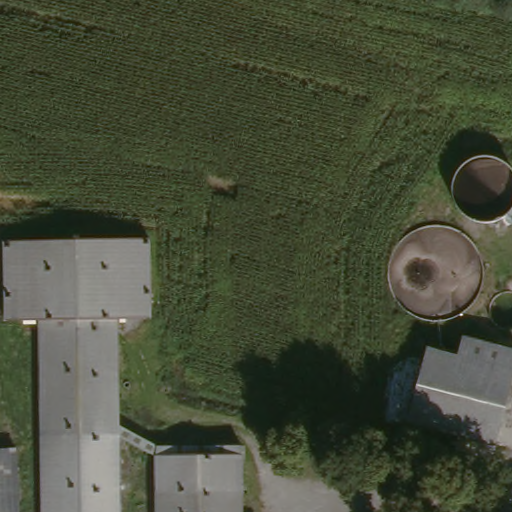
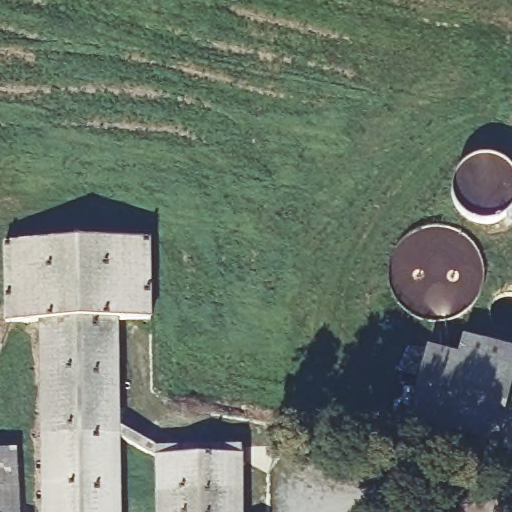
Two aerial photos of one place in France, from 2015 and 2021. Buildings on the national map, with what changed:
unchanged [(126,442),(128,512),(116,512),(115,474),(112,341),(36,342),(36,320),(9,318),(8,241),(152,239),(152,317),(120,318),(125,427),(160,447),(243,447),(238,497),(152,499),(155,458),(126,442)]
unchanged [(115,474),(116,512),(39,512),(38,455),(36,342),(112,341),(115,474)]
unchanged [(422,355),(453,362),(457,342),(512,353),(512,374),(497,448),(407,430),(422,355)]
unchanged [(10,455),(13,512),(0,512),(0,456),(10,455)]
unchanged [(214,498),(238,497),(238,503),(238,512),(153,512),(152,499),(214,498)]

